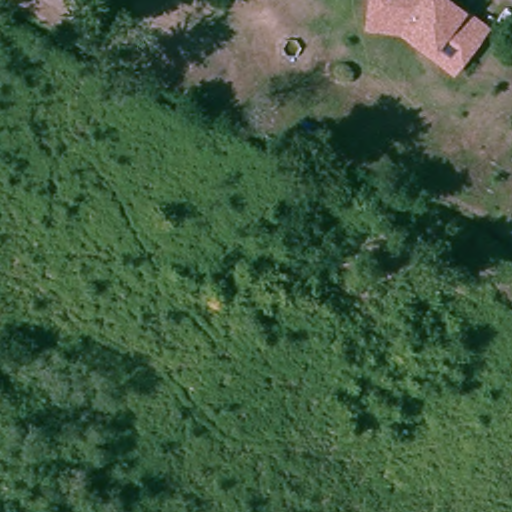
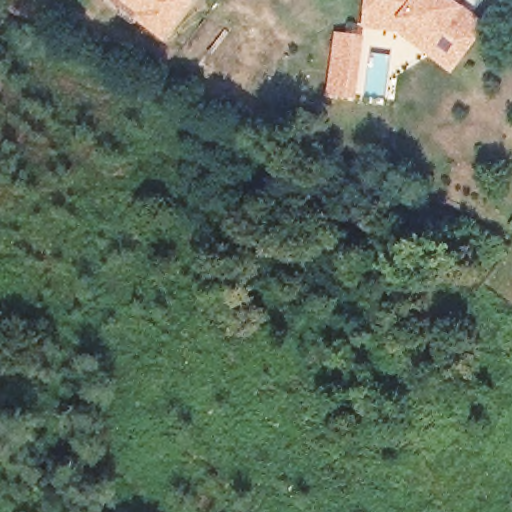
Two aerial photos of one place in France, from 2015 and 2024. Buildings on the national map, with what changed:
new [(144,20),(153,6),(144,0),(197,0),(170,38),(144,20)]
unchanged [(463,39),(453,51),(438,40),(435,44),(403,20),(368,16),(370,0),(449,0),(484,27),(471,45),(463,39)]
unchanged [(368,16),(403,20),(435,44),(438,40),(453,51),(463,39),(471,45),(452,70),(399,30),(367,26),(368,16)]
new [(337,32),(367,36),(358,100),(328,96),(337,32)]

